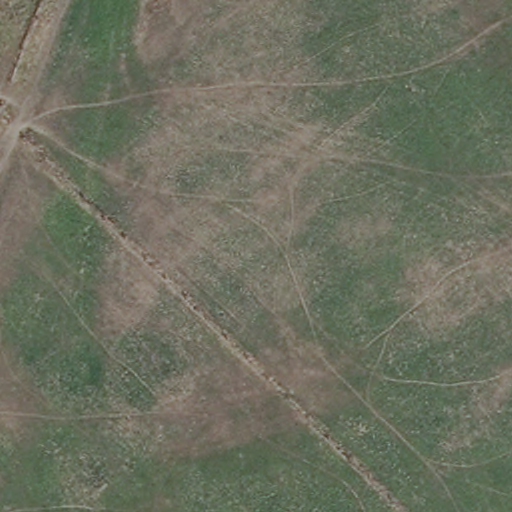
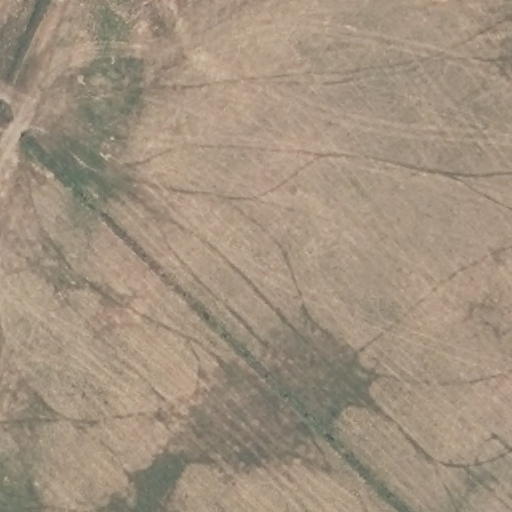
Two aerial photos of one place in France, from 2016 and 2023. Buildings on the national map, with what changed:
[]

